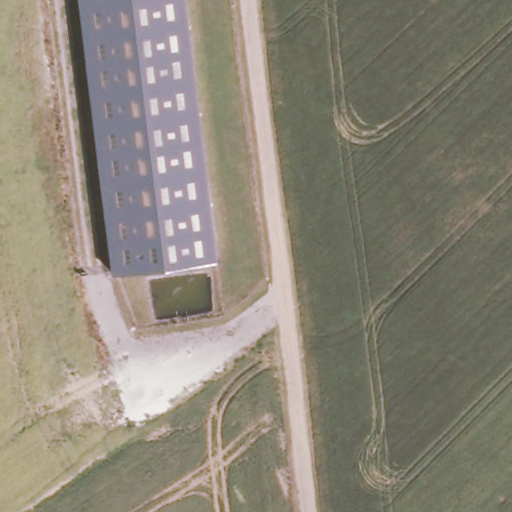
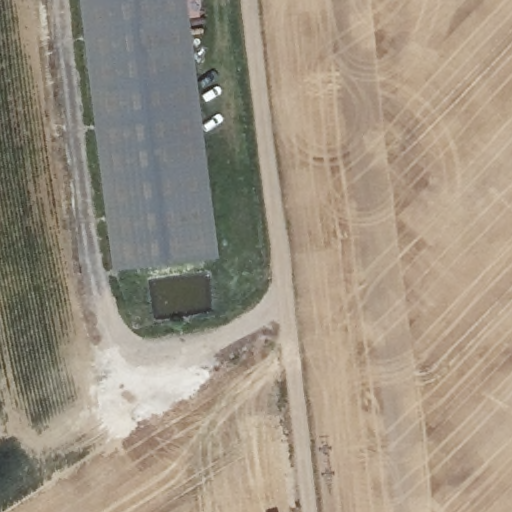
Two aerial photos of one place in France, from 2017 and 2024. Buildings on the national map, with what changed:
unchanged [(93,101),(82,0),(188,0),(192,36),(218,260),(113,272),(93,101)]

